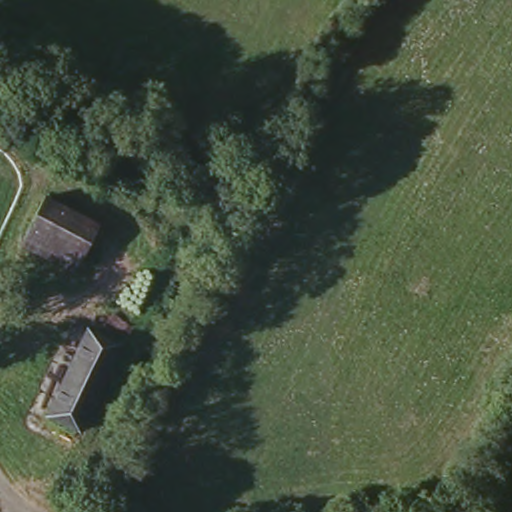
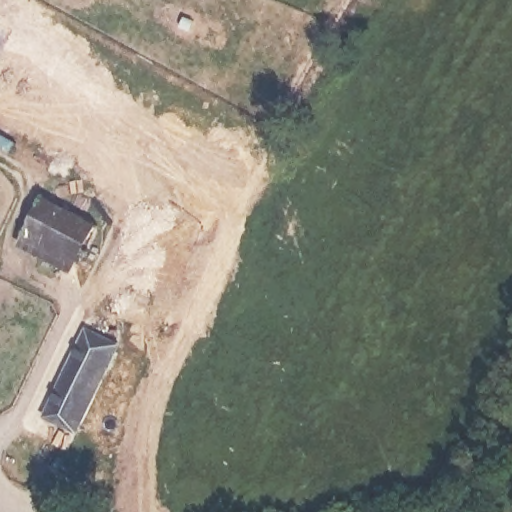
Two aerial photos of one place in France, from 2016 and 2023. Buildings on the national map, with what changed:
unchanged [(40,200),(94,226),(74,269),(18,241),(40,200)]
unchanged [(91,327),(122,344),(83,426),(51,410),(91,327)]

